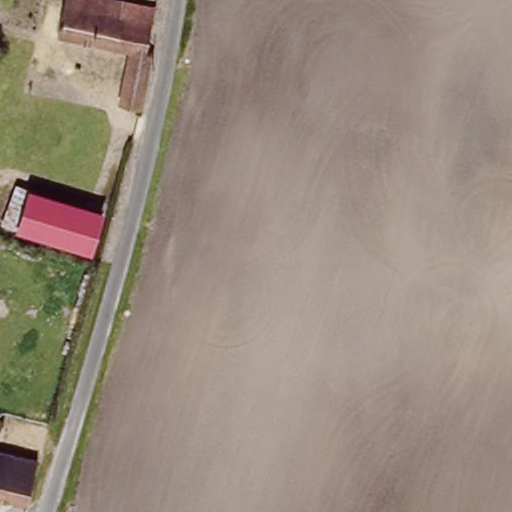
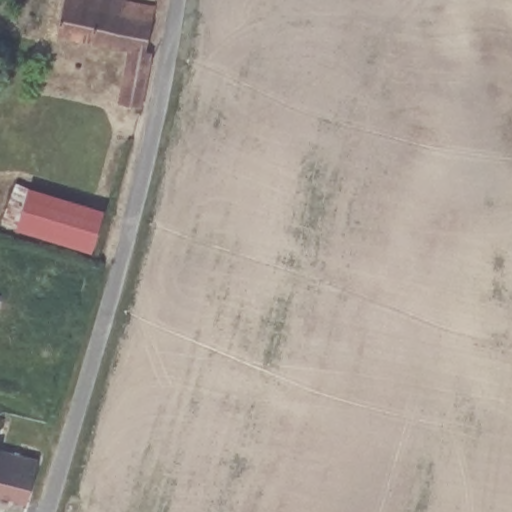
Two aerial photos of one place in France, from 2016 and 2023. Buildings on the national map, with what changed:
unchanged [(136,51),(58,38),(64,4),(73,5),(74,0),(121,0),(137,3),(134,15),(164,21),(163,29),(151,104),(151,107),(126,102),(136,51)]
unchanged [(103,216),(90,255),(19,225),(35,188),(103,216)]
unchanged [(26,501),(0,494),(0,446),(38,457),(35,465),(26,501)]

